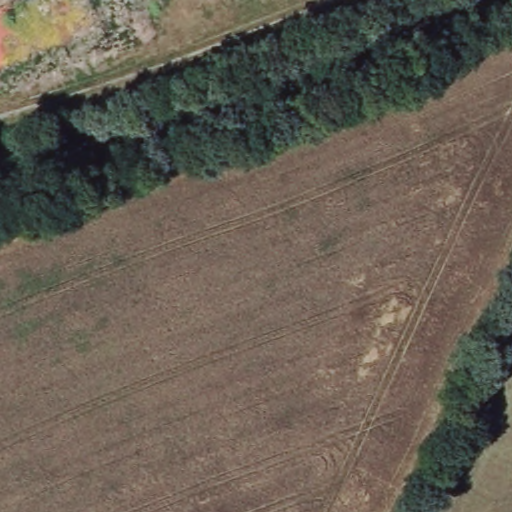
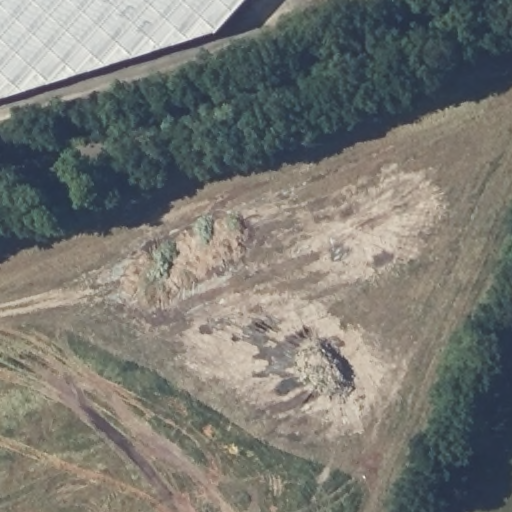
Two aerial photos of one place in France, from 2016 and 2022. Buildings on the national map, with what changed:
new [(216,34),(0,100),(0,0),(246,0),(216,34)]

